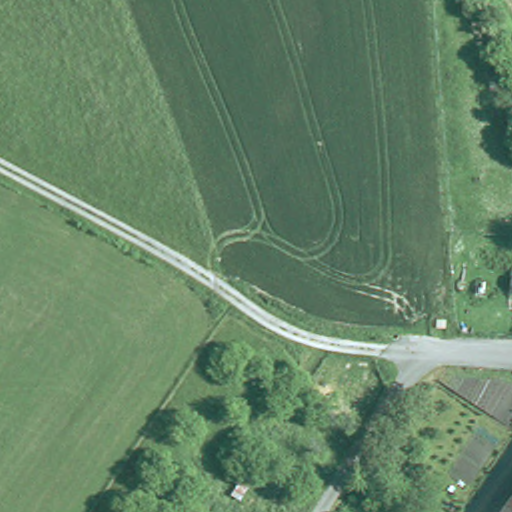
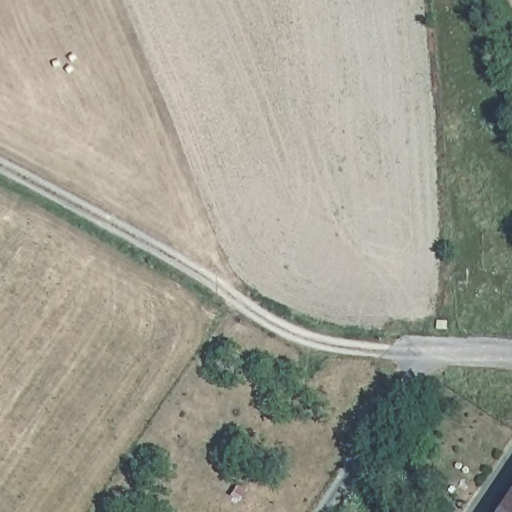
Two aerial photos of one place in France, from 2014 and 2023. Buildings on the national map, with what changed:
unchanged [(512,493),(512,512),(499,512),(506,501),(512,493)]

